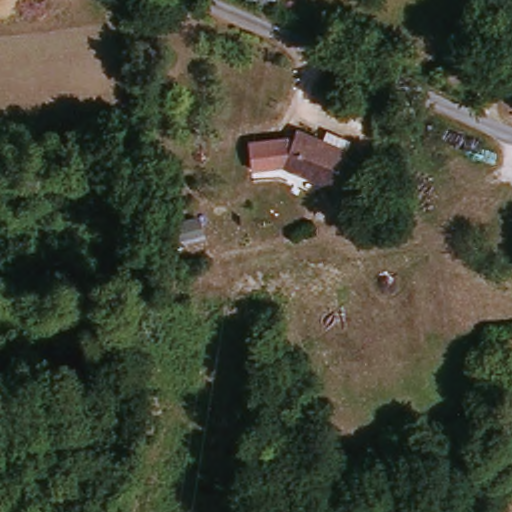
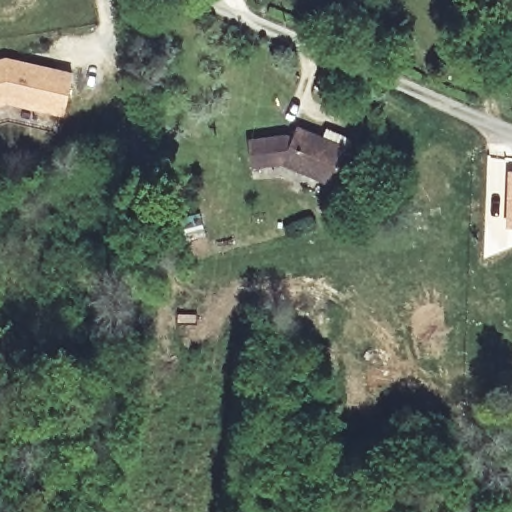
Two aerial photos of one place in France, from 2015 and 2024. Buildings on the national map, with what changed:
new [(29,65),(70,74),(61,112),(5,100),(0,102),(0,60),(4,59),(13,61),(29,65)]
unchanged [(340,182),(287,162),(302,123),(354,144),(340,182)]
unchanged [(298,132),(287,162),(251,167),(247,139),(298,132)]

